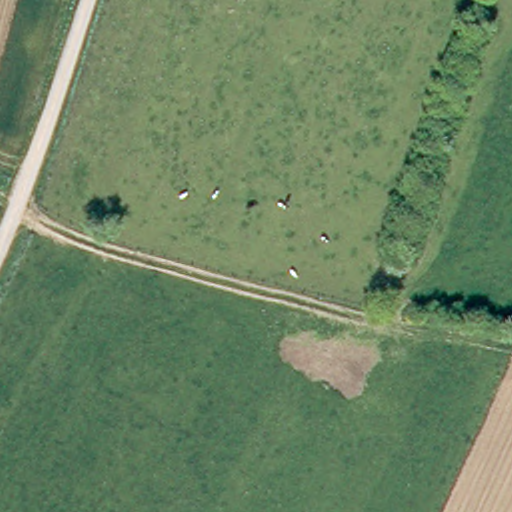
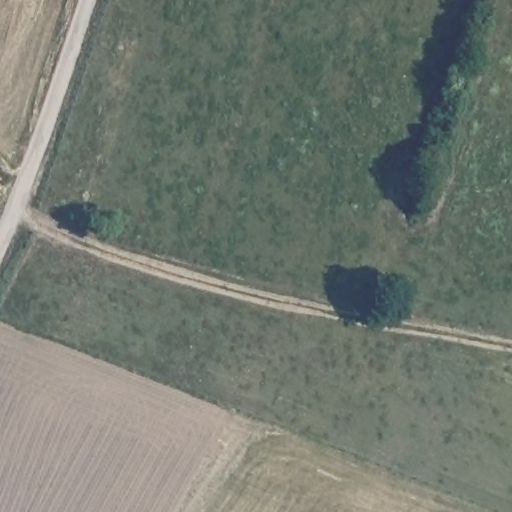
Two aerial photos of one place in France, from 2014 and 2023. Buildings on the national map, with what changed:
[]

